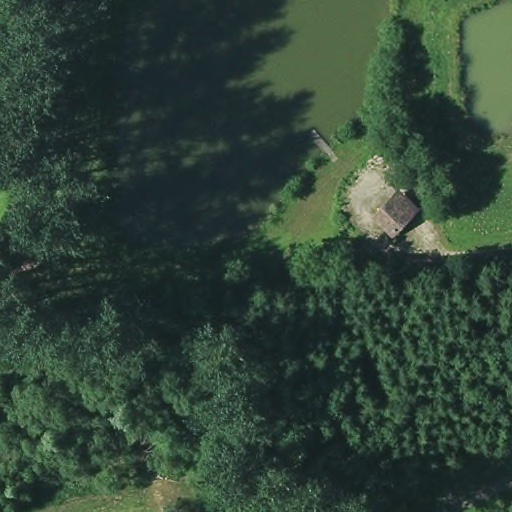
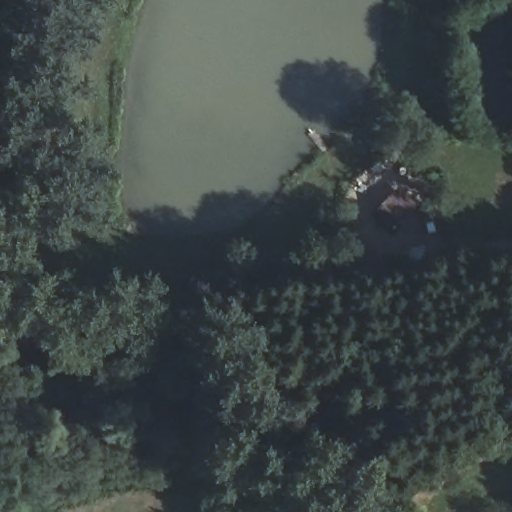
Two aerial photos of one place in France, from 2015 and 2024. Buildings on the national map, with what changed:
unchanged [(400,191),(420,211),(390,237),(374,215),(400,191)]

